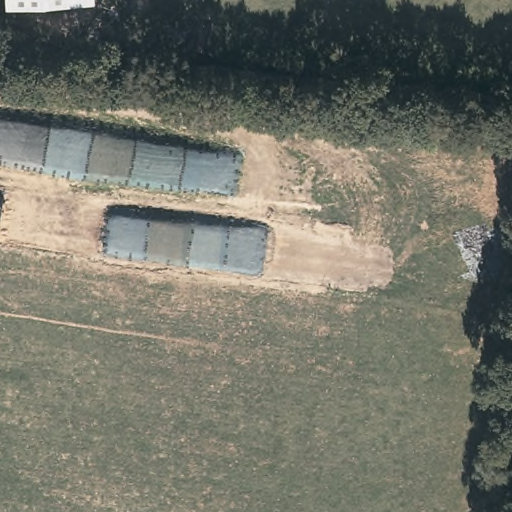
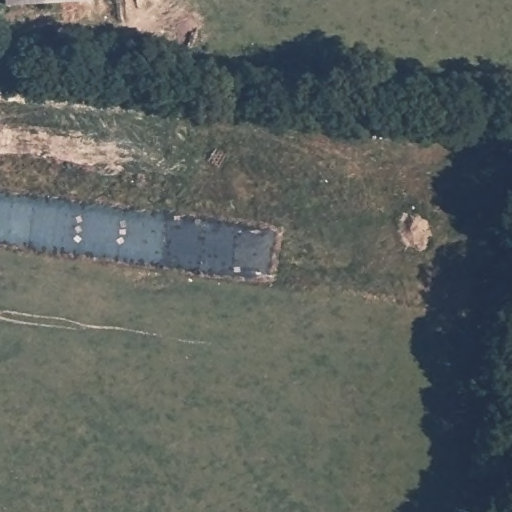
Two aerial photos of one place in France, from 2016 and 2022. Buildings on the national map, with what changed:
unchanged [(95,2),(8,6),(8,0),(95,0),(95,2)]

